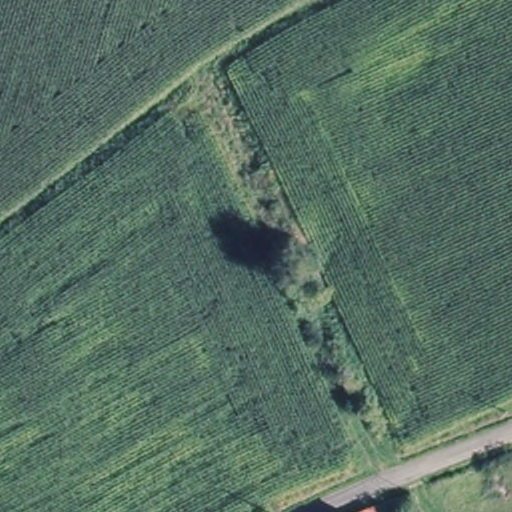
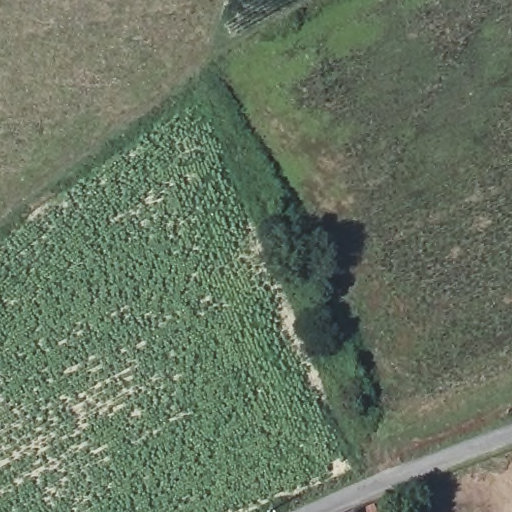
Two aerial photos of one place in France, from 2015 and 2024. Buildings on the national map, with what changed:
unchanged [(364,512),(369,510),(369,512),(364,512)]

